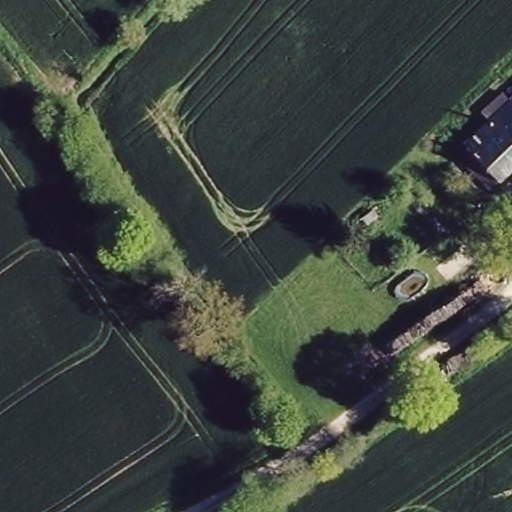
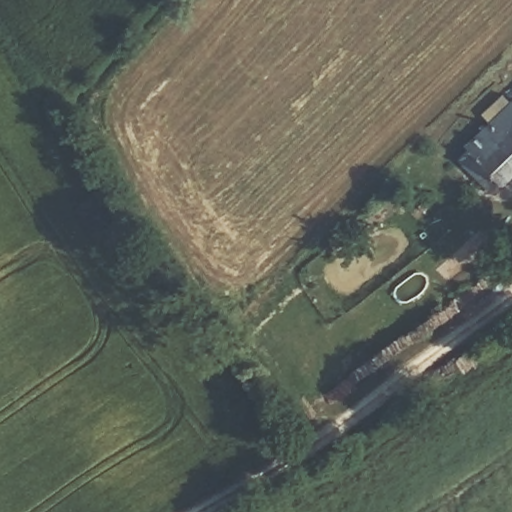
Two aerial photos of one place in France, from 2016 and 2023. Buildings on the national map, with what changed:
unchanged [(464,152),(512,100),(512,176),(502,187),(464,152)]

